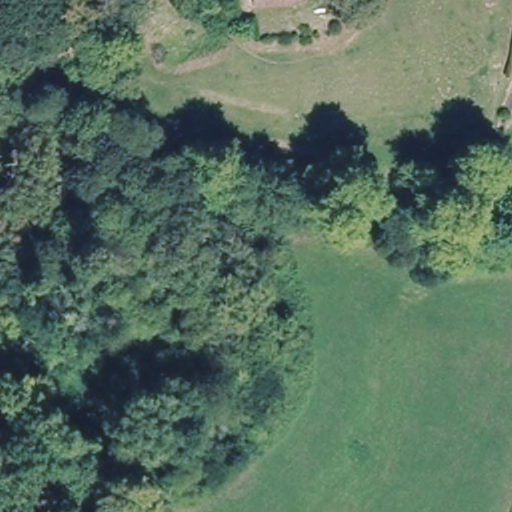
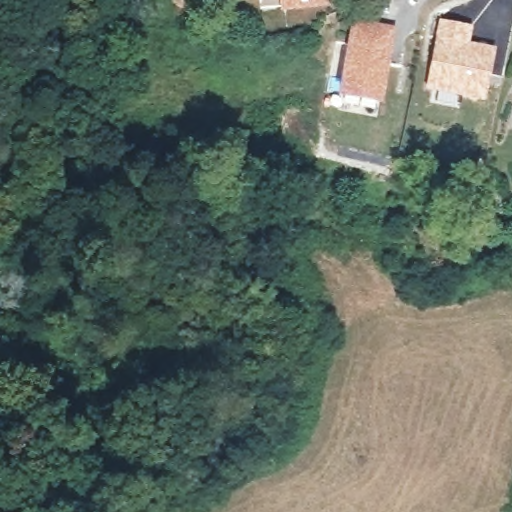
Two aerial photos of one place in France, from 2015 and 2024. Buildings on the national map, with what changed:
unchanged [(327,1),(259,6),(259,0),(327,0),(327,1)]
new [(438,17),(473,24),(469,40),(495,46),(483,100),(424,87),(438,17)]
new [(348,21),(394,25),(382,102),(337,93),(348,21)]

